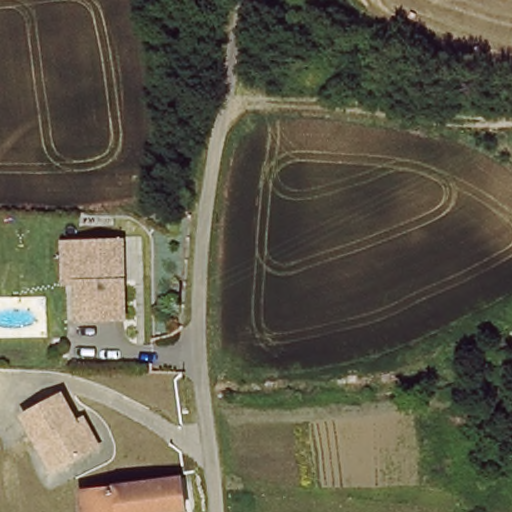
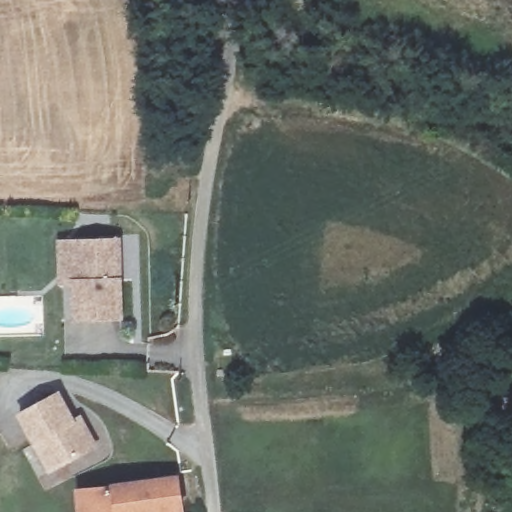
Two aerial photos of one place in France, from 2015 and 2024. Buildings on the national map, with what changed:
unchanged [(123,248),(121,271),(114,270),(113,287),(120,288),(118,325),(73,322),(78,245),(123,248)]
unchanged [(63,392),(77,418),(83,415),(100,446),(50,474),(17,415),(63,392)]
unchanged [(180,475),(182,508),(155,512),(76,512),(73,489),(180,475)]

